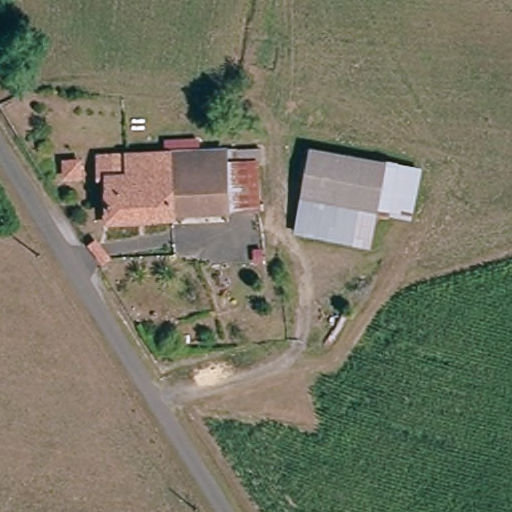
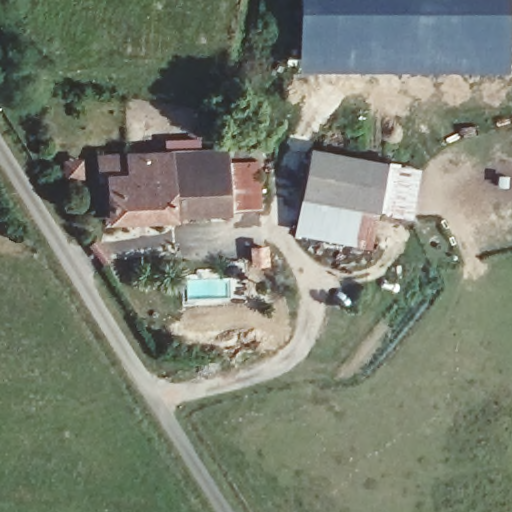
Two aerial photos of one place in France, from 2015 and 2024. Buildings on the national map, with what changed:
new [(501,39),(508,40),(508,72),(299,71),(299,0),(503,0),(501,39)]
unchanged [(117,155),(253,147),(255,177),(257,210),(172,217),(173,226),(124,228),(124,222),(119,177),(117,155)]
unchanged [(424,169),(413,225),(379,218),(372,253),(292,235),(314,148),(424,169)]

